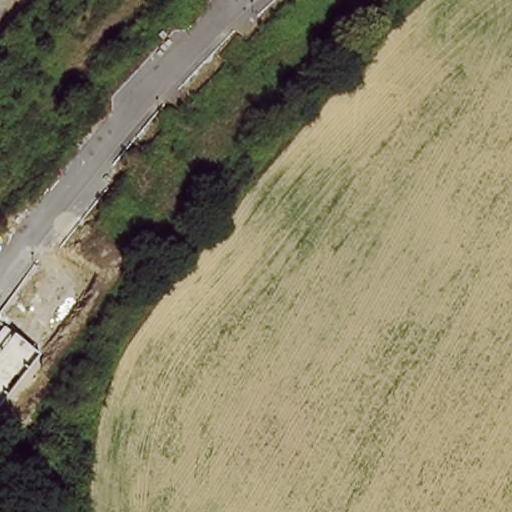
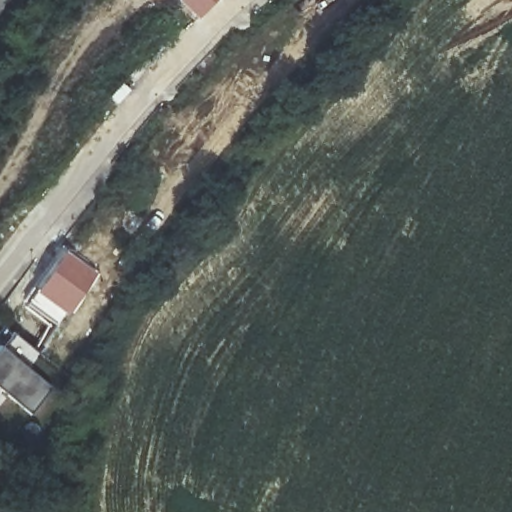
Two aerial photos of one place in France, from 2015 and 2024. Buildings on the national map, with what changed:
new [(176,0),(208,0),(193,16),(176,0)]
new [(62,247),(100,273),(70,317),(32,292),(62,247)]
unchanged [(4,326),(39,353),(0,403),(0,331),(4,326)]

